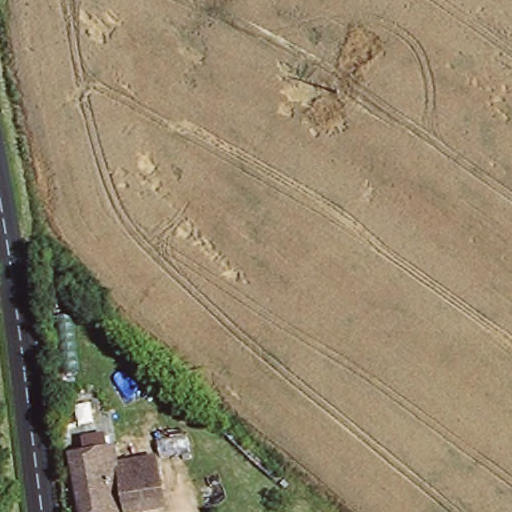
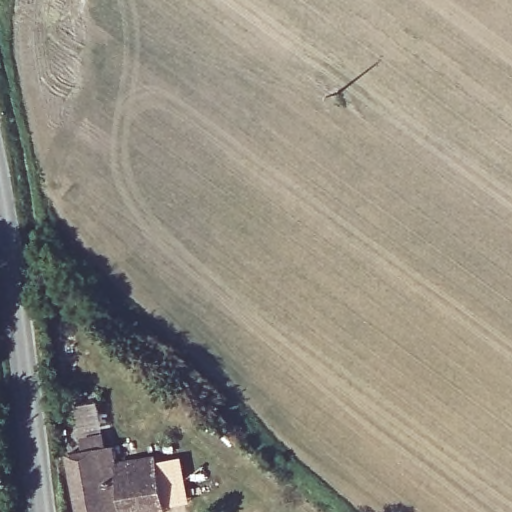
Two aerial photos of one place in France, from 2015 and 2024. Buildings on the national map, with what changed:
unchanged [(118,467),(153,463),(163,512),(79,512),(69,458),(84,456),(83,440),(104,437),(108,451),(115,450),(118,467)]

